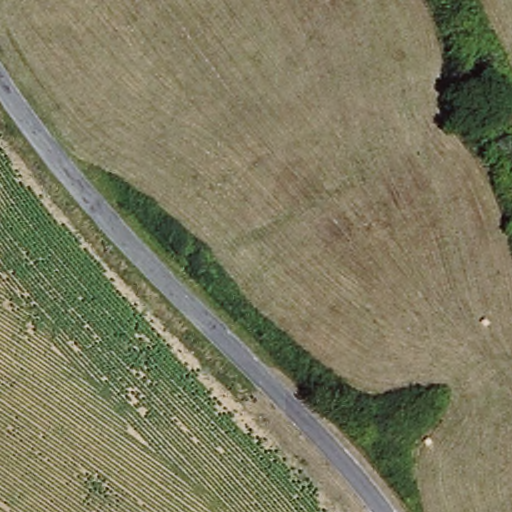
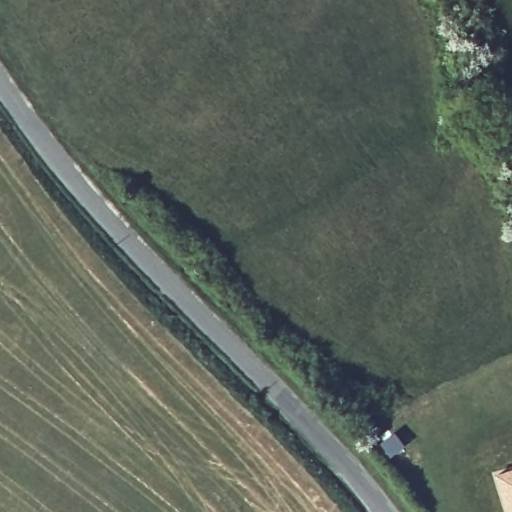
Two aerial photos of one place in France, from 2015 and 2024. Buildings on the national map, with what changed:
new [(512,468),(512,512),(509,512),(496,473),(512,468)]

